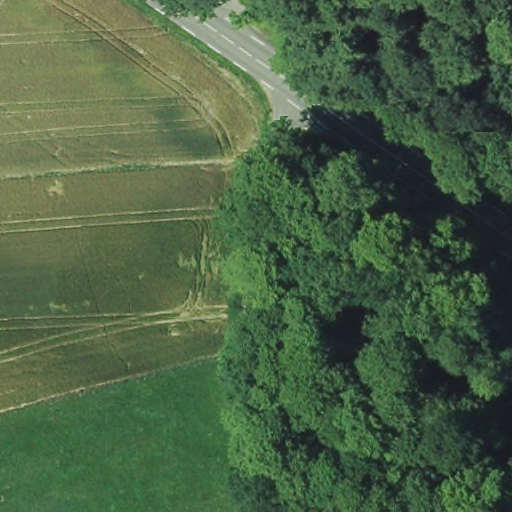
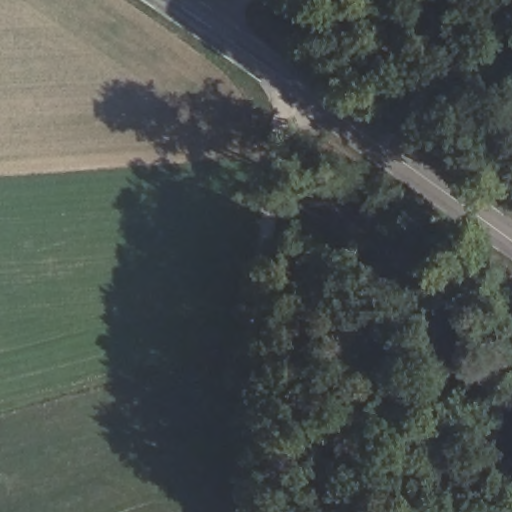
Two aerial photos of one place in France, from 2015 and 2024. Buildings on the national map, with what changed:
[]

